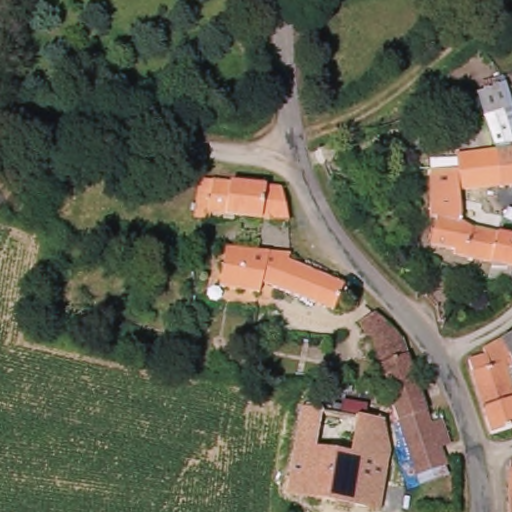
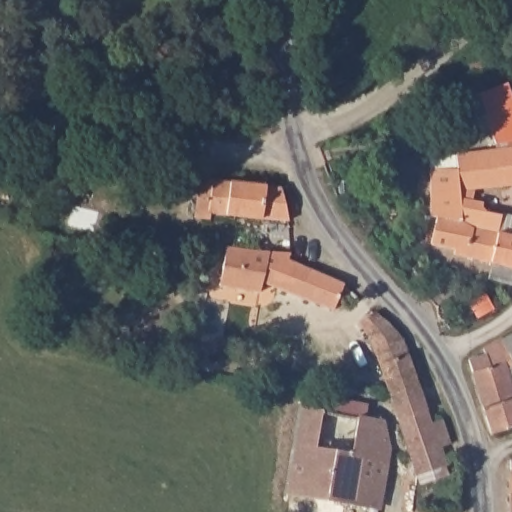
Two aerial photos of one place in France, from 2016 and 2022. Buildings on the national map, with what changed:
unchanged [(494,144),(483,114),(466,119),(458,98),(486,88),(483,81),(504,74),(512,96),(512,146),(500,147),(494,144)]
unchanged [(500,147),(512,146),(512,187),(506,188),(500,147)]
unchanged [(499,155),(503,185),(466,191),(465,162),(499,155)]
unchanged [(435,163),(458,162),(465,162),(466,191),(466,222),(512,233),(512,267),(464,257),(465,253),(438,248),(439,221),(435,221),(435,163)]
unchanged [(275,192),(283,223),(207,215),(206,224),(191,222),(195,182),(275,192)]
unchanged [(288,252),(288,261),(342,282),(332,308),(262,283),(260,293),(220,287),(225,246),(288,252)]
unchanged [(418,388),(392,400),(365,340),(352,346),(345,332),(357,325),(373,314),(393,333),(405,347),(418,388)]
unchanged [(470,362),(486,357),(484,348),(500,340),(512,334),(512,430),(492,437),(470,362)]
unchanged [(418,388),(430,422),(441,419),(450,447),(439,449),(445,468),(418,476),(392,400),(418,388)]
unchanged [(388,402),(383,426),(319,414),(322,390),(388,402)]
unchanged [(319,414),(383,426),(393,428),(378,511),(289,495),(302,411),(319,414)]

